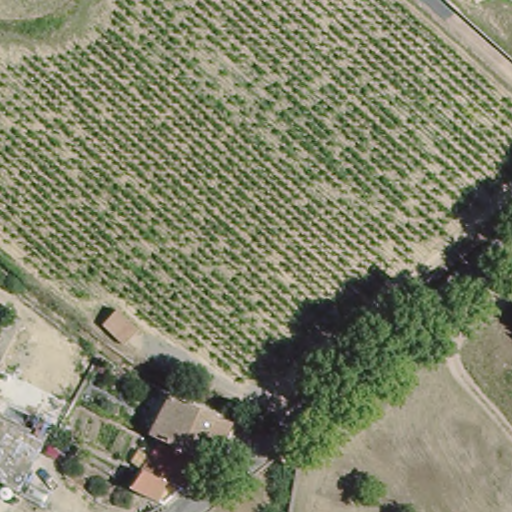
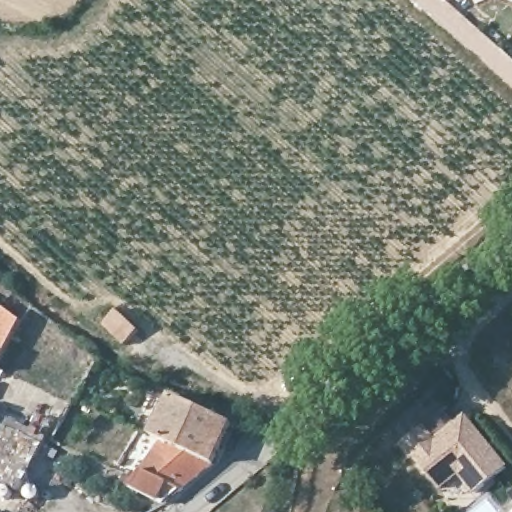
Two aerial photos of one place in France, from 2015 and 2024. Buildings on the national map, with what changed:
unchanged [(8,310),(25,319),(0,365),(0,324),(7,311),(8,310)]
unchanged [(128,348),(100,336),(110,318),(137,330),(128,348)]
unchanged [(138,424),(154,391),(232,423),(217,459),(138,424)]
new [(441,408),(454,422),(463,415),(505,464),(474,490),(457,470),(437,486),(400,442),(421,425),(441,408)]
unchanged [(16,494),(0,485),(0,416),(49,443),(16,494)]
unchanged [(130,486),(136,479),(165,443),(135,430),(138,424),(217,459),(180,489),(163,501),(130,486)]

